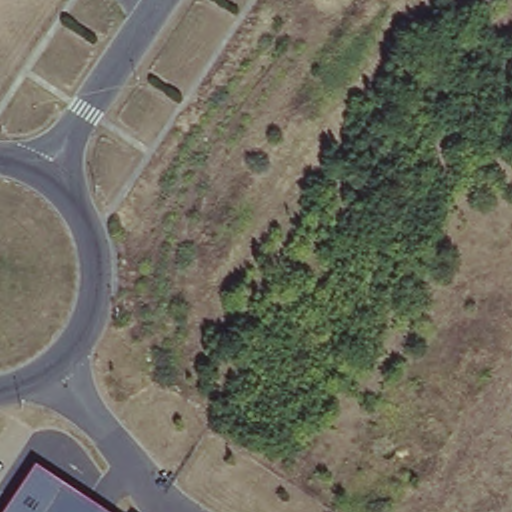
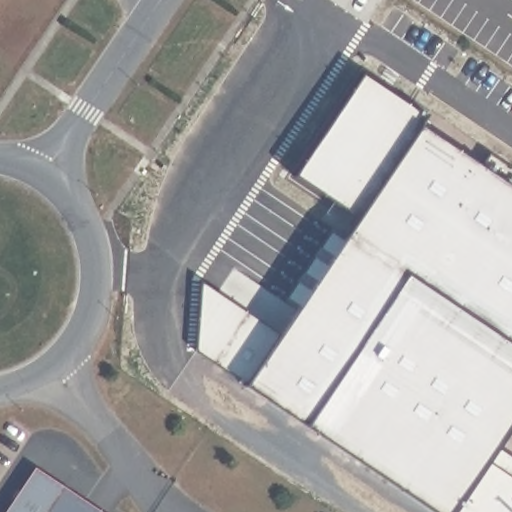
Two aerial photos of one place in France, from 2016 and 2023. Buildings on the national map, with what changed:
new [(419,128),(512,190),(512,427),(497,450),(512,460),(512,512),(433,512),(197,353),(201,285),(280,338),(360,218),(297,179),(363,77),(426,119),(419,128)]
unchanged [(102,512),(5,512),(35,467),(102,512)]

